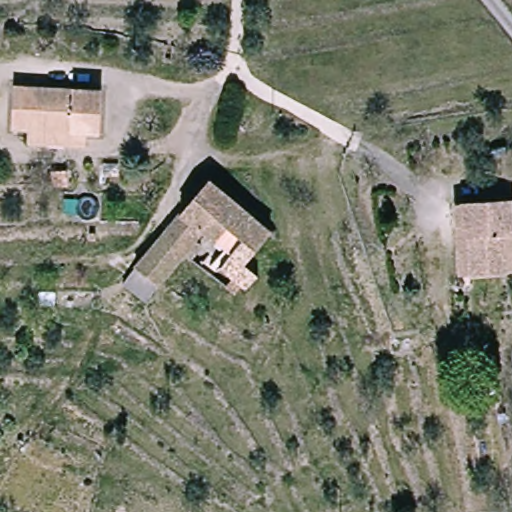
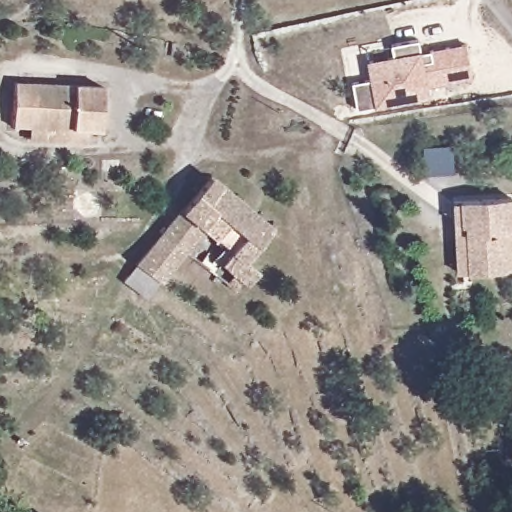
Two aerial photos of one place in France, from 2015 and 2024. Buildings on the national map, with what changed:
new [(352,83),(370,79),(366,61),(392,56),(390,45),(419,40),(421,51),(465,44),(472,80),(428,87),(430,99),(357,110),(352,83)]
unchanged [(20,142),(22,130),(4,128),(9,82),(93,95),(88,137),(88,141),(72,139),(71,148),(20,142)]
unchanged [(207,178),(273,234),(250,263),(263,273),(248,292),(213,264),(224,250),(202,232),(156,288),(135,271),(162,236),(207,178)]
unchanged [(460,268),(450,266),(461,192),(470,194),(512,201),(512,276),(497,274),(460,268)]
unchanged [(462,363),(473,365),(470,380),(458,377),(462,363)]
unchanged [(512,423),(512,476),(504,476),(504,424),(512,423)]

